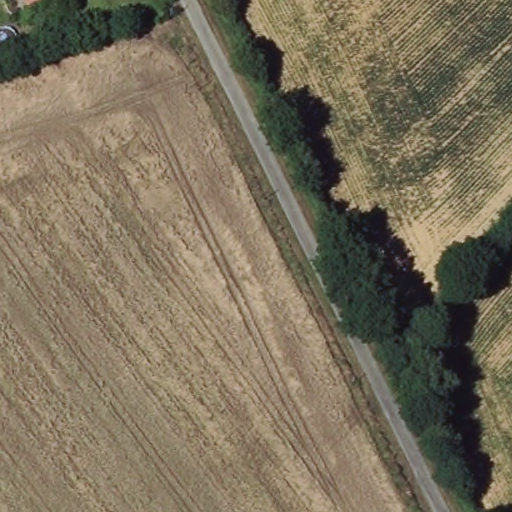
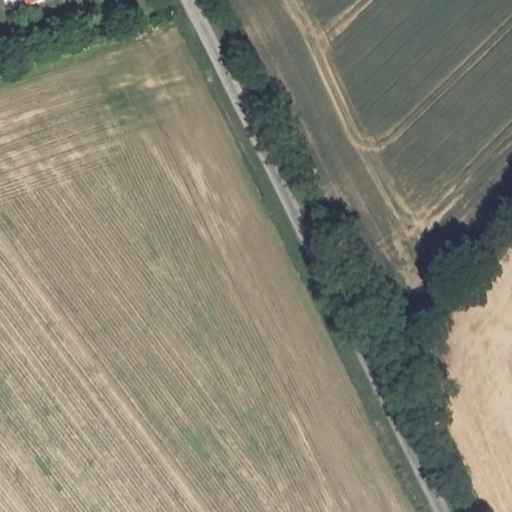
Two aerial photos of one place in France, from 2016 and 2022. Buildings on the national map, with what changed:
unchanged [(25,3),(24,0),(32,0),(25,3)]

